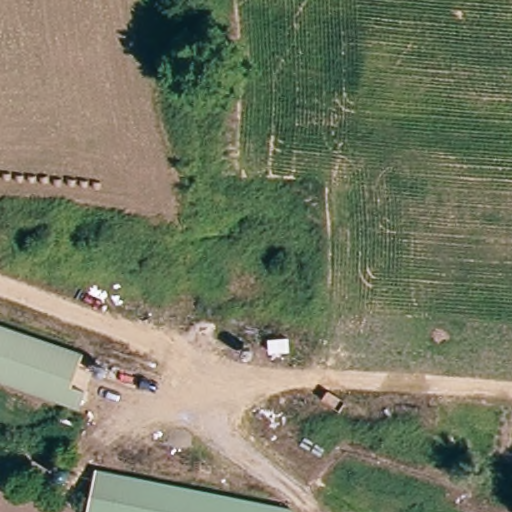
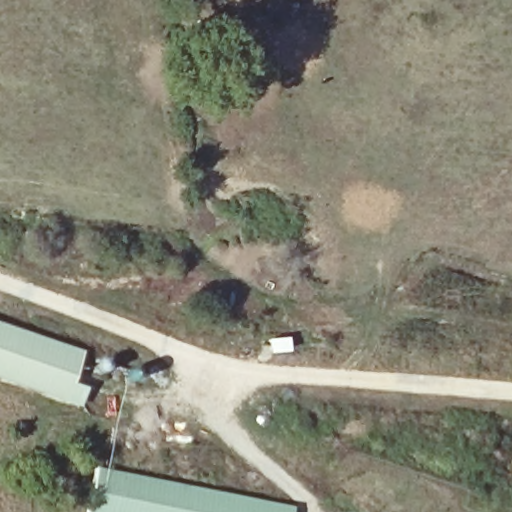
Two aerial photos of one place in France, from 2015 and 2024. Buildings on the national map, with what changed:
unchanged [(0,344),(70,369),(62,394),(80,400),(74,422),(0,396),(0,344)]
unchanged [(88,512),(97,468),(295,506),(293,512),(88,512)]

